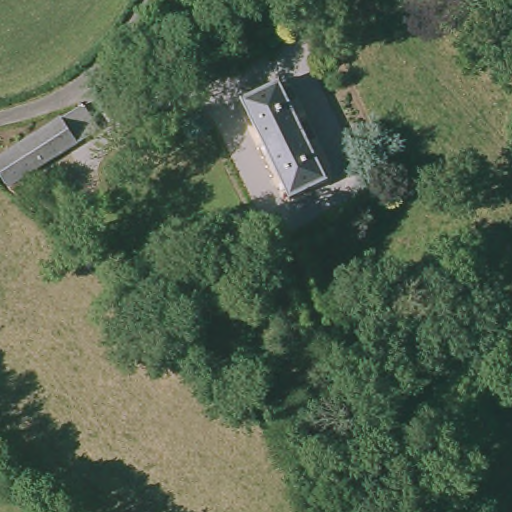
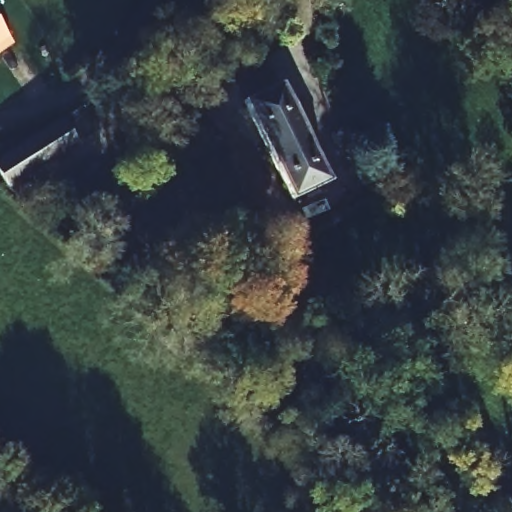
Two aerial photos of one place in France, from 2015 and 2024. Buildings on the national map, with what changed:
new [(0,55),(0,54),(0,21),(16,44),(0,55)]
unchanged [(327,184),(292,200),(247,102),(285,86),(327,184)]
unchanged [(97,129),(22,185),(43,212),(33,220),(15,201),(0,178),(0,168),(62,120),(80,109),(97,129)]
unchanged [(488,306),(460,336),(443,320),(470,290),(488,306)]

